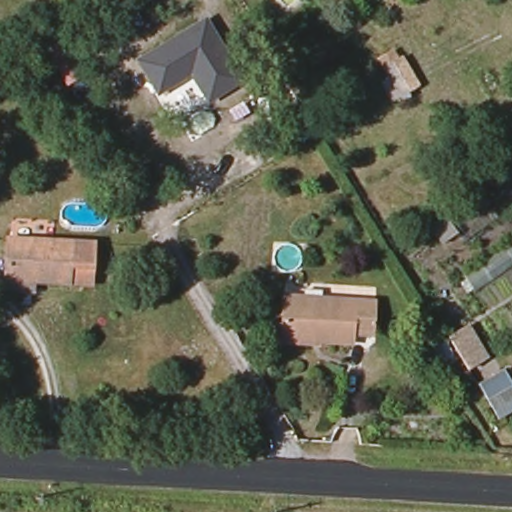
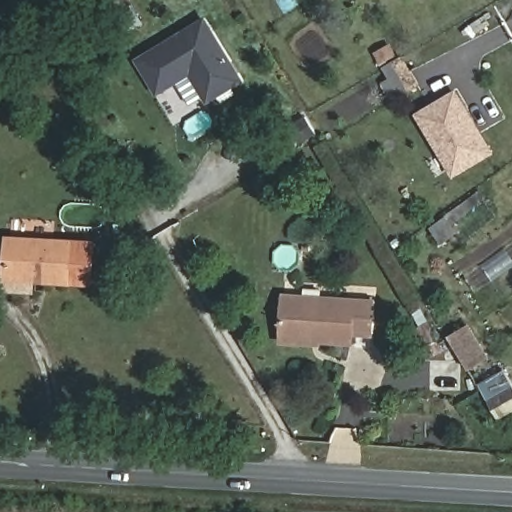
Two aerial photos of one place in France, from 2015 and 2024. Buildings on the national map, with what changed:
unchanged [(206,103),(191,78),(159,97),(137,59),(210,16),(246,80),(206,103)]
unchanged [(393,103),(370,65),(393,51),(397,58),(401,55),(420,88),(393,103)]
demolished [(468,82),(512,58),(512,88),(484,105),(468,82)]
new [(453,173),(415,116),(451,91),(469,119),(472,124),(489,150),(453,173)]
demolished [(413,115),(433,103),(448,126),(428,138),(413,115)]
unchanged [(480,190),(490,202),(453,226),(460,236),(442,248),(427,226),(480,190)]
unchanged [(0,280),(5,235),(94,242),(92,285),(0,280)]
unchanged [(371,337),(354,337),(351,346),(320,344),(320,348),(277,344),(282,293),(374,299),(371,337)]
unchanged [(431,319),(452,358),(433,368),(412,330),(431,319)]
unchanged [(490,358),(466,369),(447,335),(468,322),(490,358)]
unchanged [(500,369),(512,388),(512,414),(496,423),(470,387),(500,369)]

